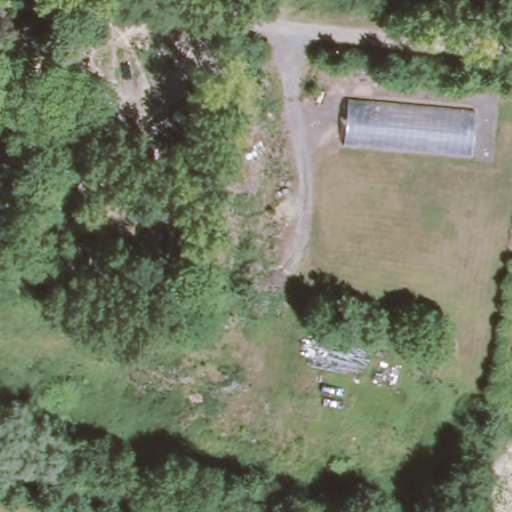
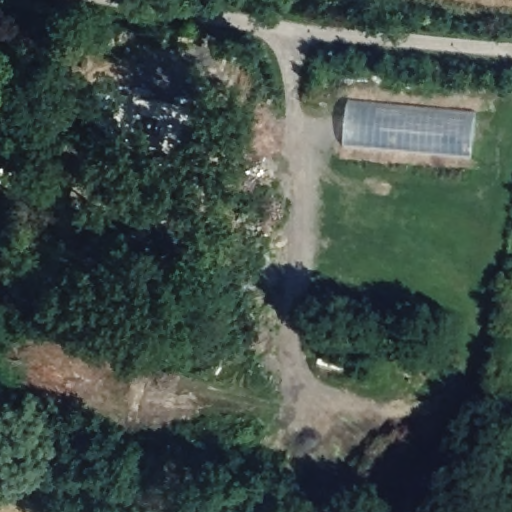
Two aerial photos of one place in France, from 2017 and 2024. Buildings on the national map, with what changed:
unchanged [(477,116),(475,153),(347,143),(350,104),(477,116)]

